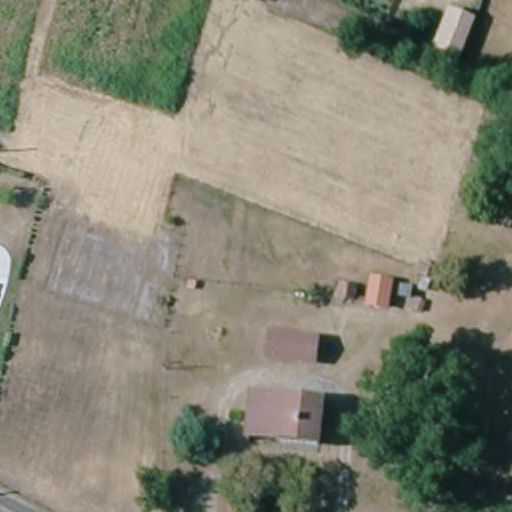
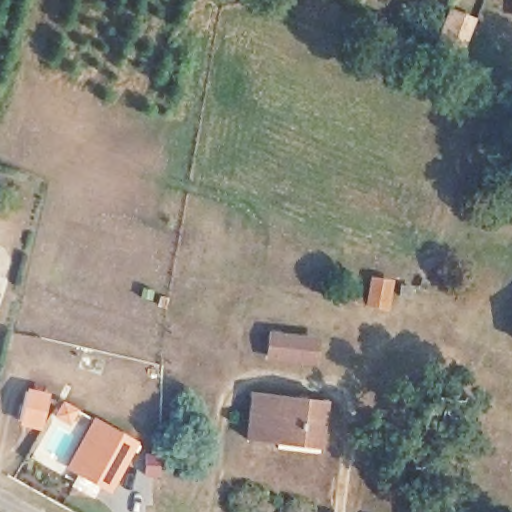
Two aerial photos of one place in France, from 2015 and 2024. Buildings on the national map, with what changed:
unchanged [(452,12),(457,0),(484,0),(476,21),(461,60),(438,50),(452,12)]
unchanged [(388,308),(369,305),(373,281),(391,284),(388,308)]
unchanged [(314,363),(270,357),(273,336),(317,341),(314,363)]
new [(28,390),(47,395),(41,424),(21,420),(28,390)]
unchanged [(319,445),(250,436),(255,396),(323,405),(319,445)]
new [(108,487),(79,471),(70,466),(96,420),(106,425),(134,441),(108,487)]

